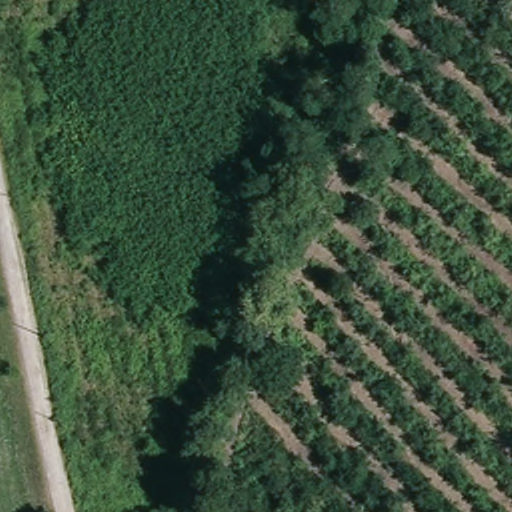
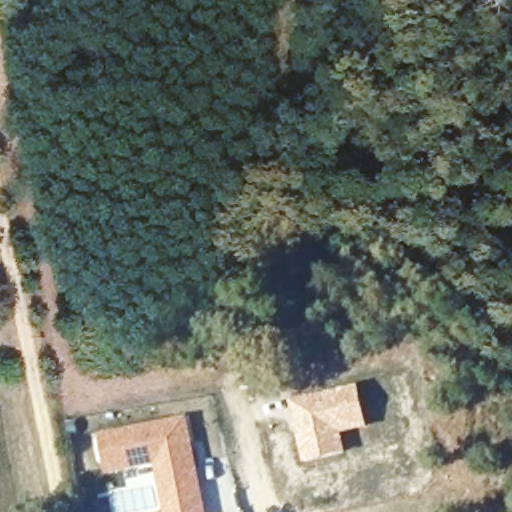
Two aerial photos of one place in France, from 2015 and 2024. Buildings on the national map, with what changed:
new [(343,433),(347,453),(303,463),(289,400),(358,384),(368,427),(343,433)]
new [(116,472),(109,432),(189,416),(208,512),(165,512),(156,463),(150,465),(116,472)]

